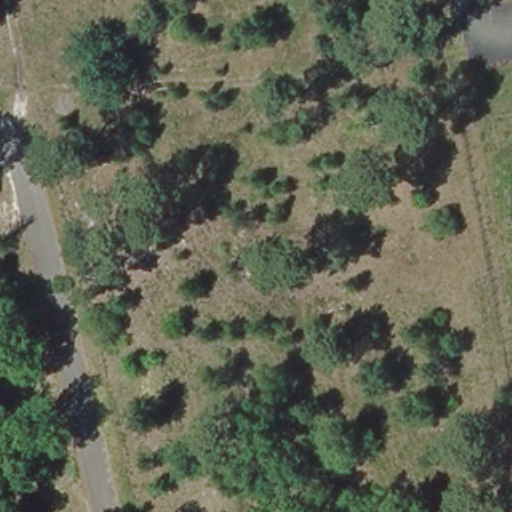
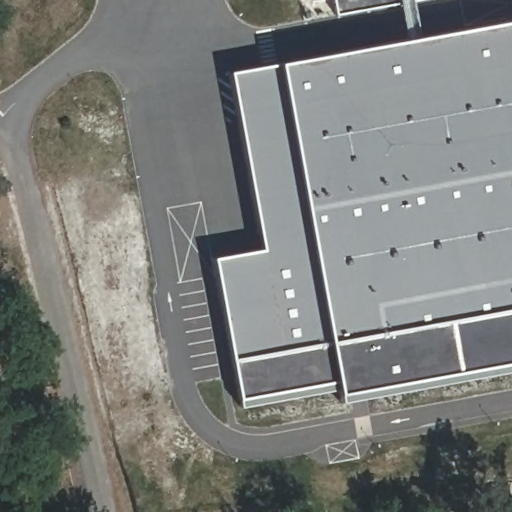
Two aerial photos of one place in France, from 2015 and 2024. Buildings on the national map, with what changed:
new [(239,79),(416,47),(407,5),(345,16),(341,0),(439,0),(422,2),(430,44),(512,30),(512,380),(353,409),(350,390),(249,407),(223,261),(272,256),(239,79)]
demolished [(512,315),(484,177),(512,172),(512,315)]

